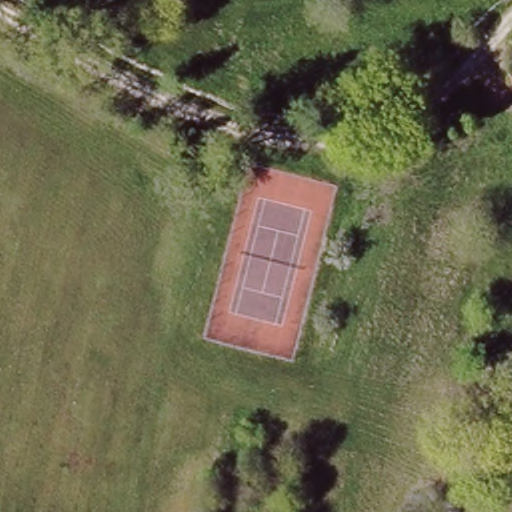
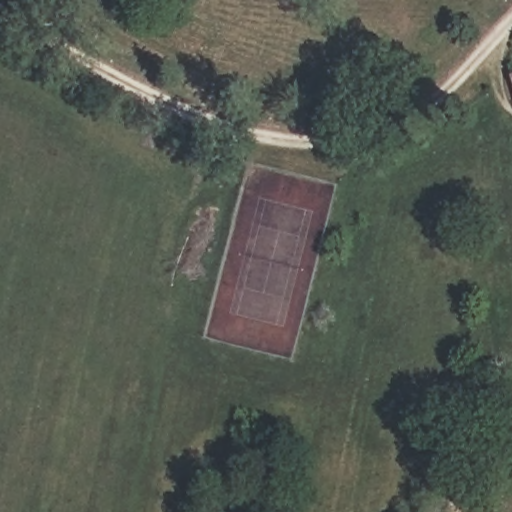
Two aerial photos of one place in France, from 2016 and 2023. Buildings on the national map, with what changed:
unchanged [(510,74),(512,73),(512,83),(510,74)]

